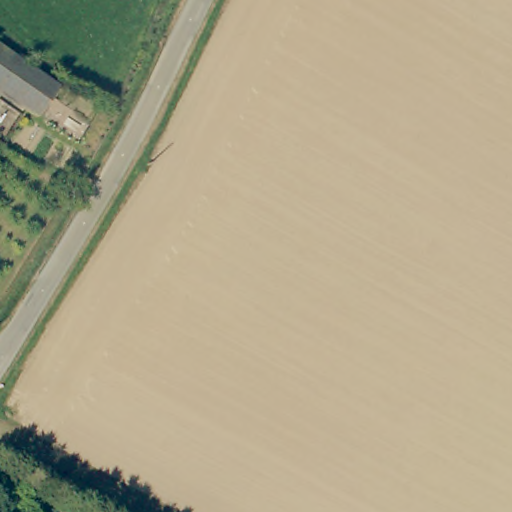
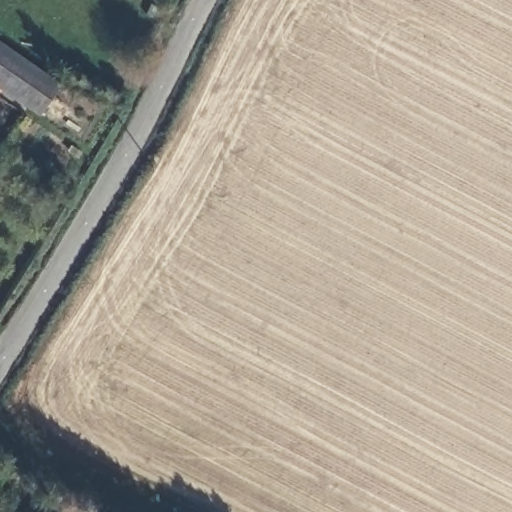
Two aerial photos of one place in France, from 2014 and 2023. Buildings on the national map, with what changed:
unchanged [(57,76),(42,104),(30,100),(0,82),(0,40),(9,44),(7,46),(22,55),(57,76)]

